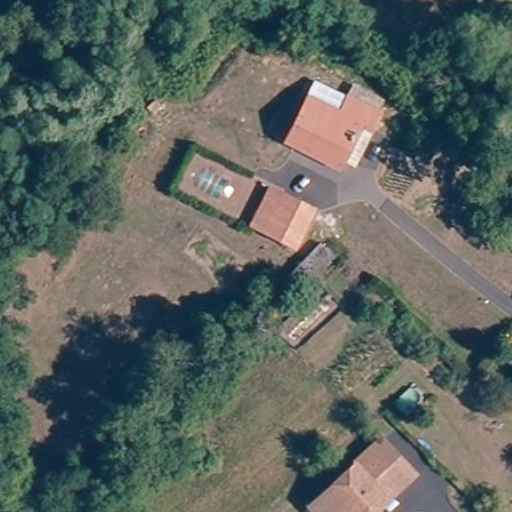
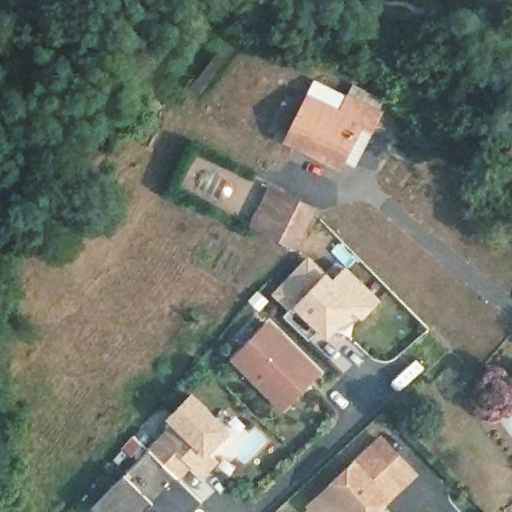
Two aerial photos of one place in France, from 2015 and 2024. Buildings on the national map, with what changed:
unchanged [(337,159),(334,165),(281,139),(310,79),(376,111),(367,129),(348,164),(337,159)]
unchanged [(248,222),(265,190),(269,184),(309,207),(306,213),(289,244),(288,244),(248,222)]
demolished [(307,267),(327,245),(338,257),(318,279),(307,267)]
new [(364,319),(355,313),(327,339),(319,333),(309,342),(283,315),(289,309),(274,294),(310,258),(334,279),(348,268),(382,299),(364,319)]
new [(260,388),(252,380),(236,364),(240,359),(271,328),(319,376),(288,407),(284,412),(260,388)]
new [(151,512),(95,512),(151,454),(150,454),(176,428),(170,423),(193,400),(230,437),(209,459),(215,465),(203,478),(192,467),(178,481),(202,505),(196,512),(157,512),(154,509),(151,512)]
unchanged [(313,511),(308,504),(379,439),(383,444),(410,474),(369,512),(315,512),(313,511)]

